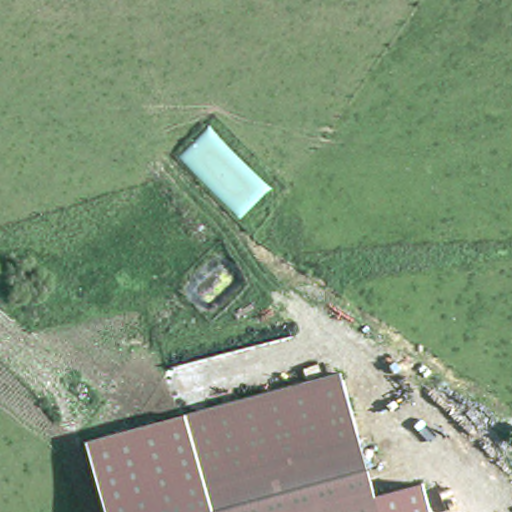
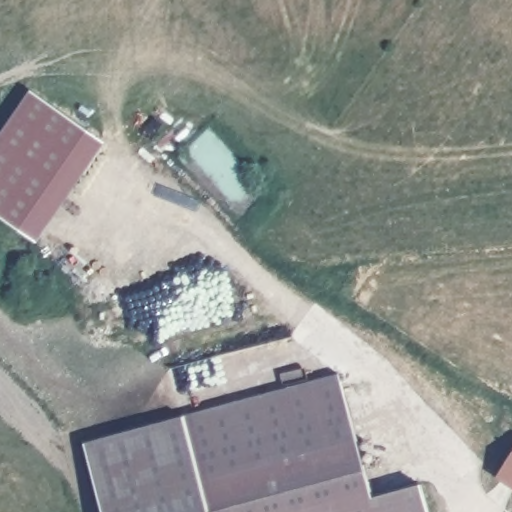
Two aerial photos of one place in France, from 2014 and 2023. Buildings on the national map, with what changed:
new [(36,239),(0,214),(0,131),(29,88),(105,140),(36,239)]
unchanged [(371,497),(375,512),(209,512),(183,415),(338,373),(371,497)]
unchanged [(183,415),(209,512),(102,512),(83,441),(183,415)]
new [(496,477),(512,450),(512,487),(496,477)]
unchanged [(428,512),(375,512),(371,497),(420,483),(428,512)]

